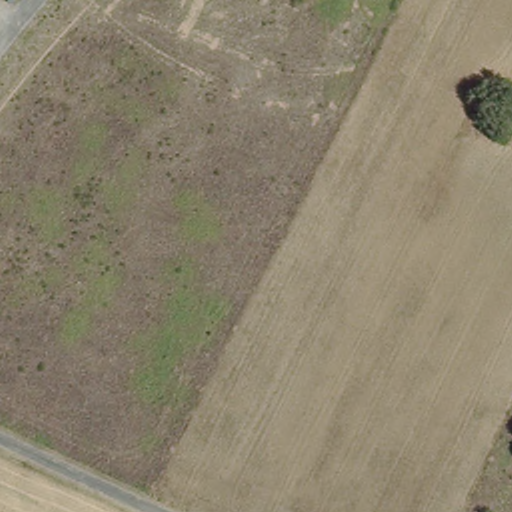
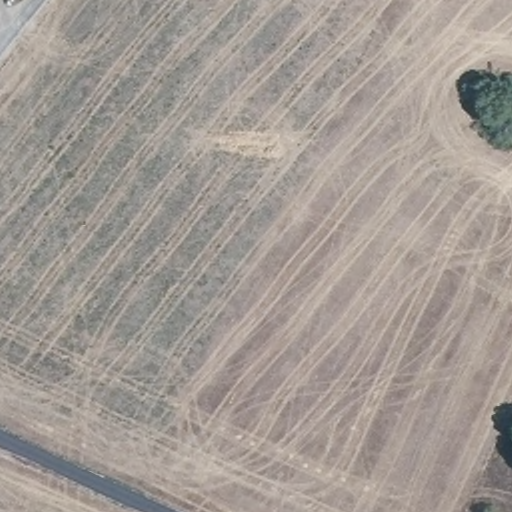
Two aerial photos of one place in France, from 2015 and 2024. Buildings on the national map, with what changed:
[]

